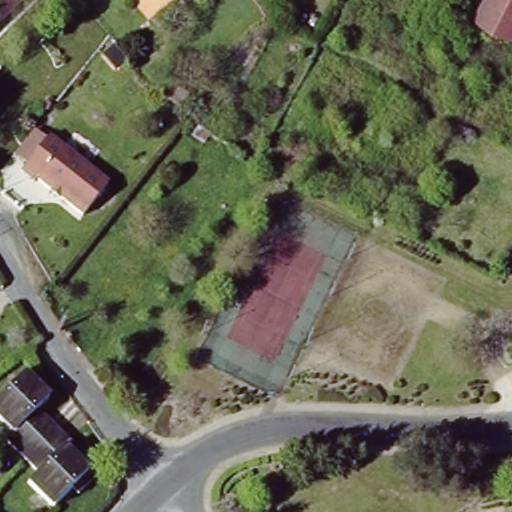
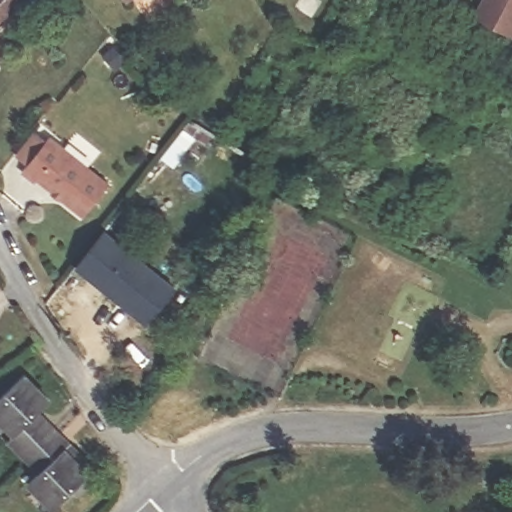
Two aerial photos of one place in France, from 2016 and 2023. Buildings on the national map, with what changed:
unchanged [(0,29),(0,0),(29,0),(0,29)]
unchanged [(480,0),(512,0),(512,35),(473,14),(480,0)]
unchanged [(197,92),(189,105),(174,96),(182,83),(197,92)]
unchanged [(199,120),(217,131),(212,139),(194,128),(199,120)]
unchanged [(53,138),(112,185),(87,217),(42,181),(40,184),(25,173),(53,138)]
new [(147,327),(74,269),(106,229),(177,286),(147,327)]
unchanged [(0,446),(0,445),(7,438),(0,431),(0,397),(17,380),(42,405),(30,417),(25,422),(35,433),(42,427),(51,438),(20,467),(0,446)]
unchanged [(63,496),(48,512),(46,512),(22,488),(32,478),(20,467),(51,438),(80,467),(74,472),(80,479),(87,485),(70,502),(63,496)]

